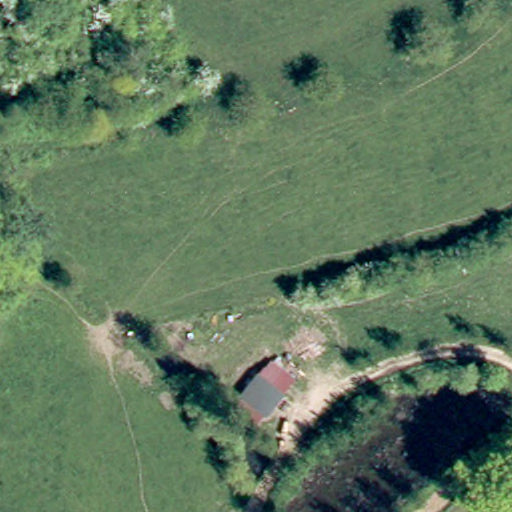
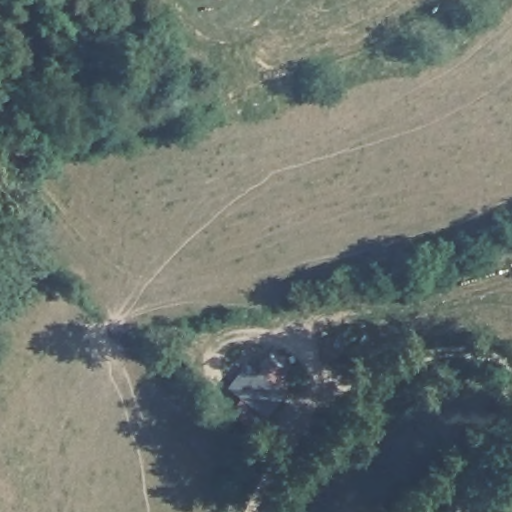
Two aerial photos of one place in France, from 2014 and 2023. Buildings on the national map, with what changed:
unchanged [(248,371),(266,384),(276,376),(297,393),(265,431),(222,402),(248,371)]

